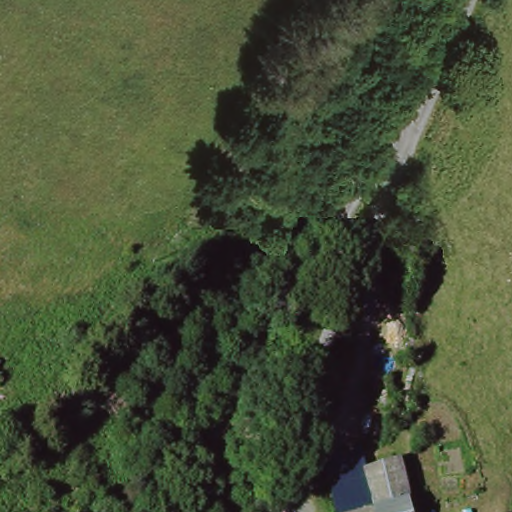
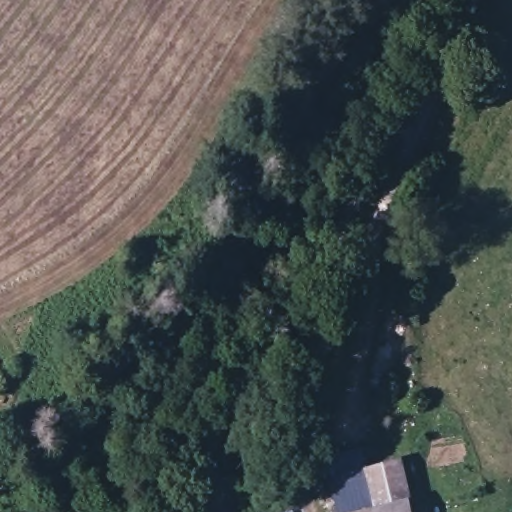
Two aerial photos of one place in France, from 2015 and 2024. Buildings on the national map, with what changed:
unchanged [(372,495),(334,504),(320,445),(357,436),(361,455),(372,495)]
unchanged [(402,487),(372,495),(361,455),(390,448),(397,463),(402,487)]
unchanged [(412,512),(325,512),(324,507),(334,504),(372,495),(402,487),(405,487),(412,512)]

